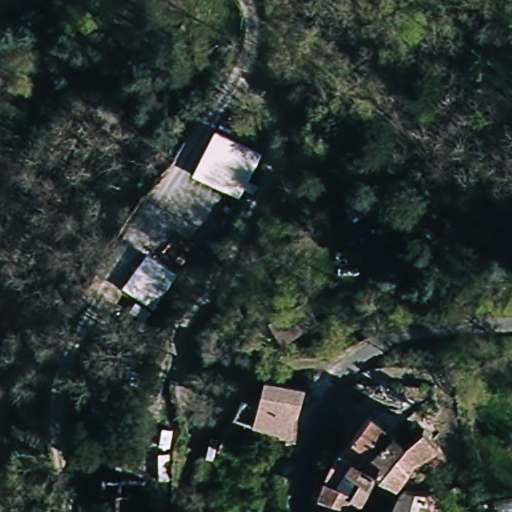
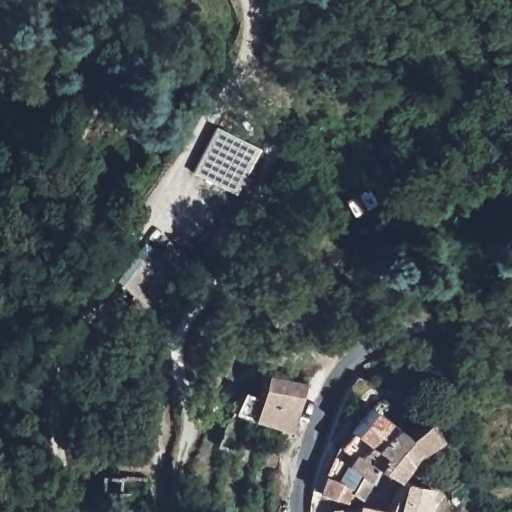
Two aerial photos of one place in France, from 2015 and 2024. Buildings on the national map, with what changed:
unchanged [(217,126),(262,150),(240,195),(195,173),(217,126)]
unchanged [(121,286),(148,253),(178,276),(145,322),(130,312),(137,298),(121,286)]
unchanged [(310,298),(320,317),(279,336),(271,318),(310,298)]
unchanged [(281,423),(280,419),(237,408),(243,391),(244,386),(259,389),(265,375),(309,380),(296,420),(296,425),(281,423)]
unchanged [(371,405),(393,422),(406,434),(425,419),(441,437),(415,460),(396,480),(377,464),(363,453),(371,445),(367,442),(354,433),(371,405)]
unchanged [(367,442),(371,445),(363,453),(377,464),(363,499),(351,496),(348,503),(317,494),(323,475),(336,450),(354,433),(367,442)]
unchanged [(394,507),(402,481),(429,484),(426,512),(354,512),(355,505),(394,507)]

